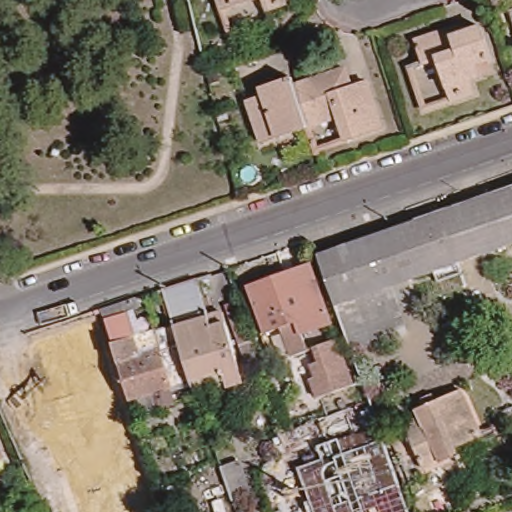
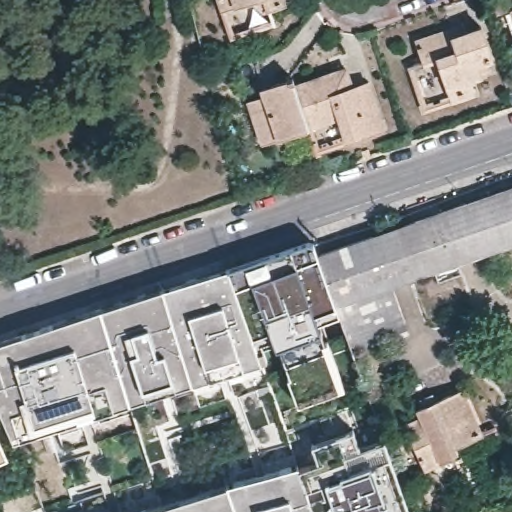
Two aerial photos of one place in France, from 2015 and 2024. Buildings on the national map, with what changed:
unchanged [(226,12),(222,0),(265,0),(226,12)]
unchanged [(292,6),(270,14),(265,0),(290,0),(292,6)]
unchanged [(475,77),(475,80),(462,84),(467,97),(444,105),(430,63),(417,68),(409,44),(443,32),(457,27),(461,36),(475,31),(487,63),(482,64),(485,73),(475,77)]
unchanged [(385,133),(348,145),(340,121),(312,130),(298,89),(338,76),(348,73),(355,90),(369,85),(385,133)]
unchanged [(265,146),(251,104),(266,99),(264,92),(296,81),(298,89),(312,130),(283,140),(265,146)]
unchanged [(372,298),(388,345),(360,354),(325,257),(419,225),(415,211),(444,201),(449,215),(512,193),(512,249),(492,256),(372,298)]
unchanged [(362,388),(326,400),(320,381),(323,380),(319,366),(326,363),(321,350),(298,357),(289,330),(273,335),(255,289),(318,266),(353,363),(362,388)]
new [(228,268),(261,364),(14,441),(0,408),(0,343),(228,268)]
demolished [(251,383),(234,388),(233,385),(232,381),(227,382),(225,374),(200,382),(182,327),(169,292),(205,281),(216,319),(230,315),(251,383)]
demolished [(200,382),(136,401),(108,312),(132,304),(135,314),(142,339),(182,327),(200,382)]
demolished [(112,395),(89,400),(92,410),(51,424),(30,371),(56,359),(56,351),(93,340),(112,395)]
unchanged [(227,382),(232,381),(233,385),(204,393),(200,382),(225,374),(227,382)]
unchanged [(427,467),(417,442),(410,444),(405,428),(410,427),(409,423),(430,414),(427,404),(435,400),(465,388),(485,433),(457,445),(460,452),(427,467)]
new [(312,444),(353,430),(359,448),(384,440),(409,512),(144,512),(318,460),(312,444)]
unchanged [(12,460),(0,466),(0,434),(12,460)]
demolished [(341,458),(340,453),(350,451),(350,448),(364,444),(376,485),(343,494),(333,460),(341,458)]
demolished [(131,455),(148,512),(124,512),(108,461),(131,455)]

